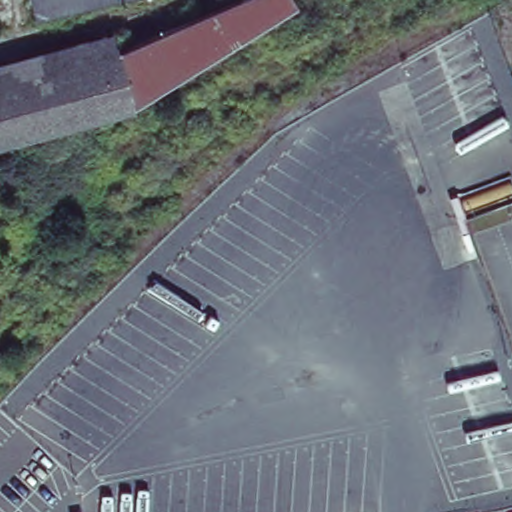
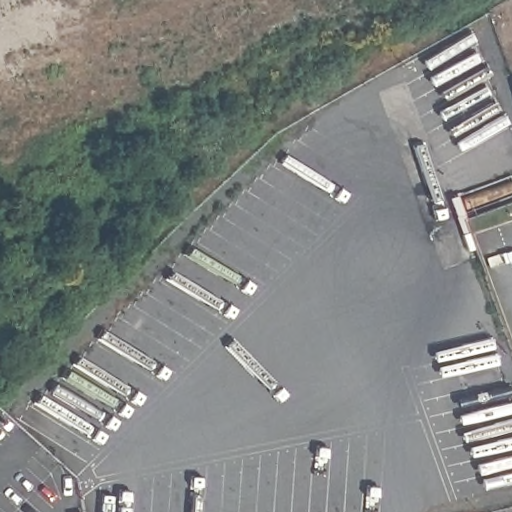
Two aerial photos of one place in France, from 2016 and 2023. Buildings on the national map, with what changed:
demolished [(129,45),(268,0),(287,0),(293,23),(129,100),(130,105),(0,144),(0,82),(129,45)]
demolished [(38,19),(34,0),(117,0),(38,19)]

